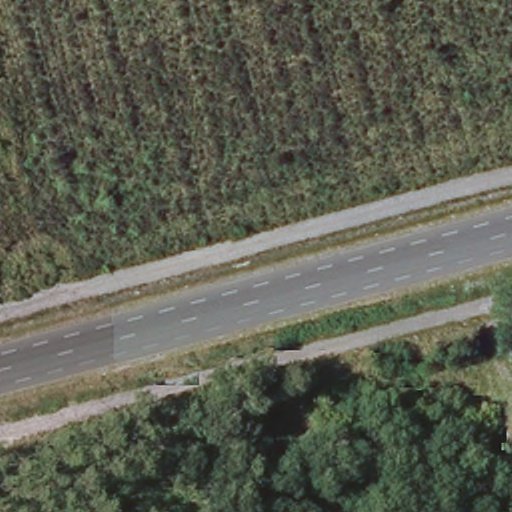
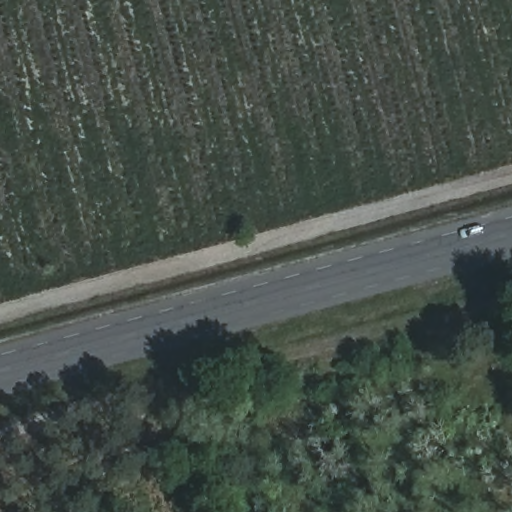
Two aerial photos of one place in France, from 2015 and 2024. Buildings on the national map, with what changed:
unchanged [(376,464),(341,477),(327,441),(361,429),(376,464)]

